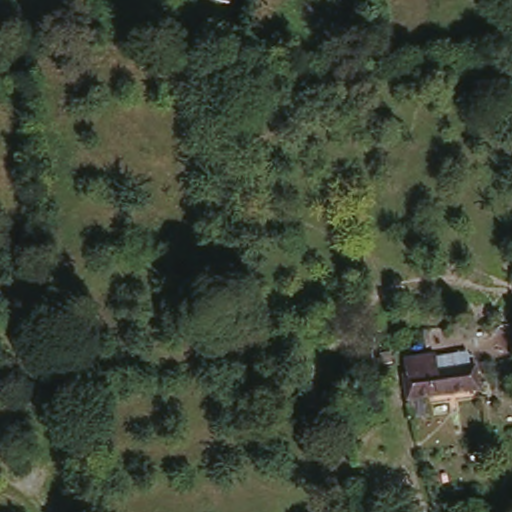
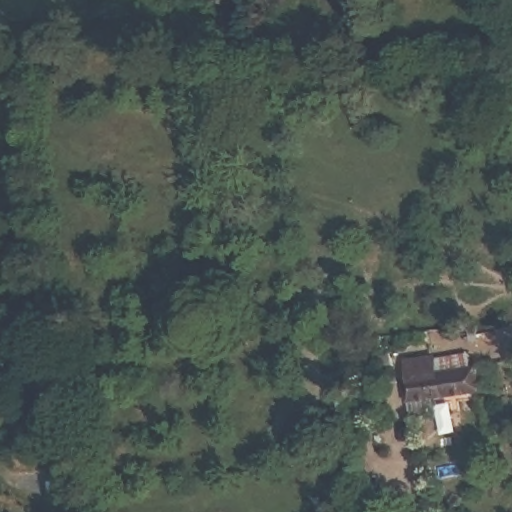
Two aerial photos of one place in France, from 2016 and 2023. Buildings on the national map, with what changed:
unchanged [(236,0),(235,5),(212,0),(236,0)]
unchanged [(213,49),(215,37),(251,45),(250,57),(213,49)]
unchanged [(405,410),(399,387),(405,385),(400,365),(432,358),(470,350),(474,370),(479,393),(405,410)]

